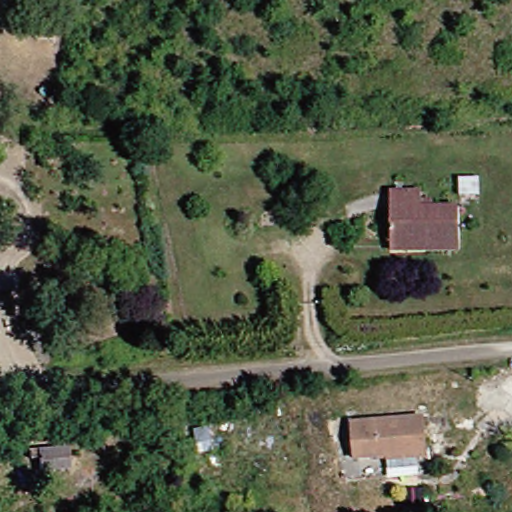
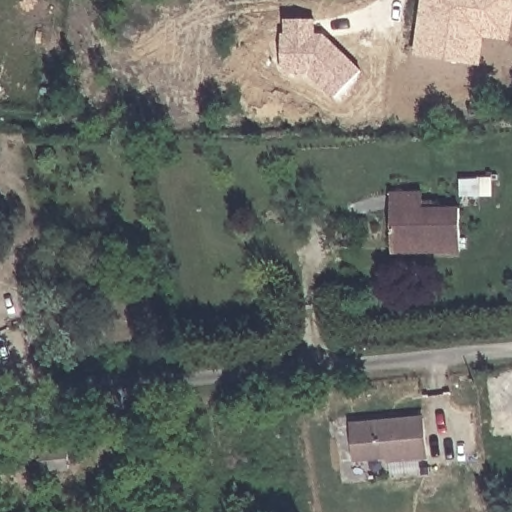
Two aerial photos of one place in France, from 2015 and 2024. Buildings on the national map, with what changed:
new [(483,37),(480,65),(413,56),(421,0),(512,0),(512,27),(510,41),(483,37)]
new [(334,98),(307,73),(284,73),(281,33),(286,33),(286,20),(317,17),(317,34),(325,33),(362,70),(334,98)]
unchanged [(383,192),(418,191),(418,209),(444,209),(452,209),(453,250),(446,251),(420,251),(386,252),(386,245),(383,192)]
unchanged [(345,422),(417,417),(421,457),(348,459),(345,422)]
unchanged [(42,471),(41,447),(69,445),(72,470),(42,471)]

